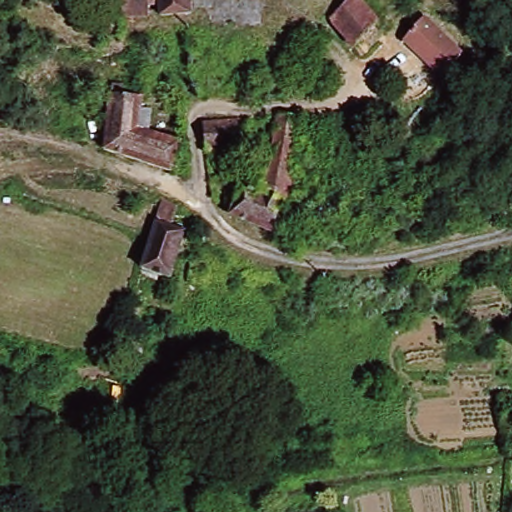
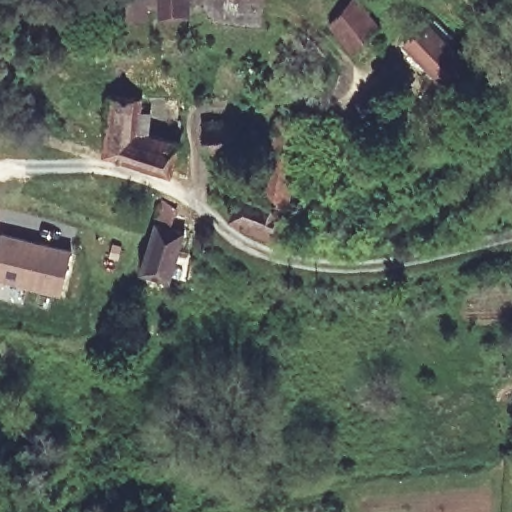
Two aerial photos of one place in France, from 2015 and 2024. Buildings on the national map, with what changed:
unchanged [(155,0),(193,0),(193,16),(156,17),(155,0)]
unchanged [(355,5),(382,32),(360,52),(337,27),(355,5)]
unchanged [(446,32),(465,52),(441,76),(402,34),(422,16),(441,36),(446,32)]
unchanged [(193,159),(192,180),(107,151),(111,124),(113,94),(144,96),(144,112),(183,125),(184,141),(178,154),(193,159)]
unchanged [(277,154),(282,121),(292,123),(301,124),(288,208),(292,210),(281,239),(232,220),(244,190),(261,197),(277,154)]
unchanged [(220,126),(249,124),(251,136),(264,135),(266,151),(209,158),(205,127),(220,126)]
demolished [(29,180),(1,174),(5,152),(34,159),(29,180)]
unchanged [(186,238),(172,284),(141,276),(161,205),(177,210),(171,234),(186,238)]
new [(0,277),(0,236),(1,233),(72,252),(63,293),(0,277)]

